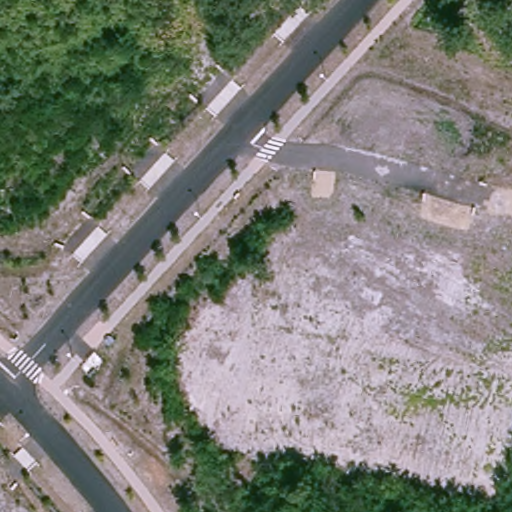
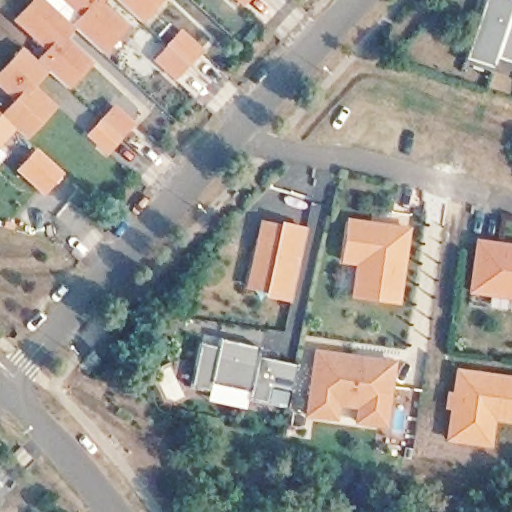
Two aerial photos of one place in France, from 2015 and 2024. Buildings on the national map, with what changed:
new [(77,74),(66,87),(47,69),(37,60),(47,49),(15,19),(32,0),(44,0),(72,25),(62,36),(81,53),(90,61),(77,74)]
new [(97,1),(125,27),(101,52),(72,25),(82,14),(67,0),(98,0),(97,1)]
new [(142,24),(117,0),(164,0),(142,24)]
new [(244,4),(239,0),(247,0),(244,4)]
new [(512,61),(498,57),(494,66),(468,59),(486,0),(512,0),(512,61)]
new [(205,49),(175,81),(152,59),(182,27),(205,49)]
new [(25,49),(37,60),(47,69),(32,86),(55,106),(26,138),(15,128),(3,117),(18,100),(0,84),(0,76),(25,49)]
new [(137,123),(107,155),(86,135),(115,103),(137,123)]
new [(3,117),(15,128),(0,144),(0,114),(3,117)]
new [(280,222),(280,218),(307,225),(292,301),(265,297),(265,291),(246,287),(260,218),(280,222)]
new [(351,299),(355,266),(341,263),(347,218),(411,226),(400,305),(351,299)]
new [(512,243),(512,299),(469,292),(476,238),(512,243)]
new [(217,345),(220,338),(260,346),(257,357),(298,364),(293,389),(272,384),(268,404),(249,400),(251,389),(212,381),(211,393),(191,388),(200,342),(217,345)]
new [(351,357),(363,359),(397,364),(387,427),(360,423),(362,408),(340,405),(338,420),(310,416),(318,353),(351,357)]
new [(512,425),(496,422),(492,449),(445,441),(450,410),(445,409),(447,392),(452,392),(456,368),(512,376),(512,425)]

